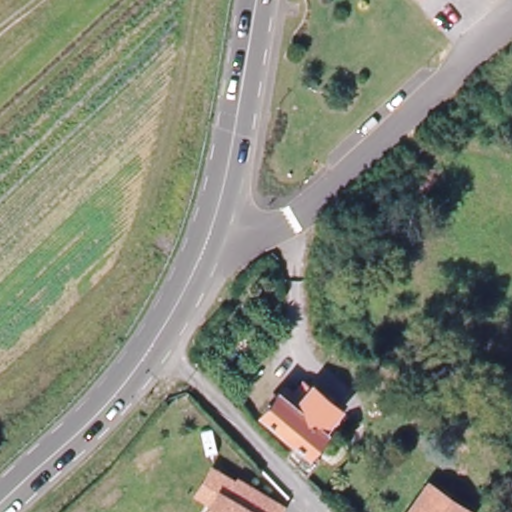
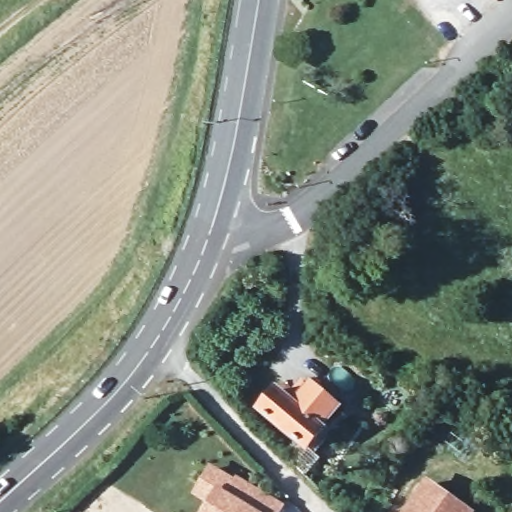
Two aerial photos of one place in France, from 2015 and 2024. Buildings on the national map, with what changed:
unchanged [(307,467),(284,444),(297,431),(264,401),(279,385),(294,398),(313,377),(339,401),(307,437),(322,450),(307,467)]
unchanged [(206,471),(231,485),(234,481),(258,495),(277,507),(274,512),(204,512),(209,503),(193,493),(206,471)]
unchanged [(464,509),(461,512),(404,512),(426,482),(464,509)]

